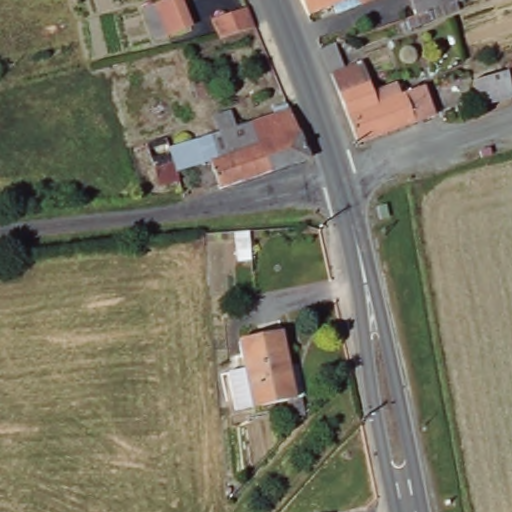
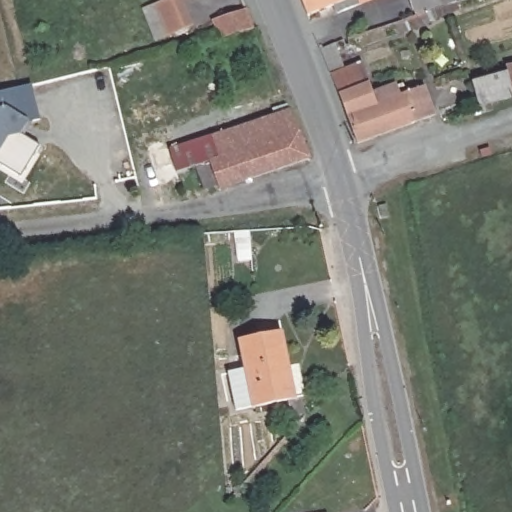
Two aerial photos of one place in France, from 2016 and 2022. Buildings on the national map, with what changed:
unchanged [(191,28),(154,41),(142,10),(170,0),(179,0),(179,1),(191,28)]
unchanged [(179,0),(181,0),(179,1),(179,0)]
unchanged [(329,6),(303,16),(296,0),(366,0),(332,14),(329,6)]
unchanged [(411,15),(421,11),(417,0),(464,0),(466,6),(444,15),(439,5),(432,8),(436,20),(416,28),(411,15)]
unchanged [(213,19),(248,8),(255,28),(219,39),(213,19)]
unchanged [(321,49),(336,44),(344,69),(360,64),(372,91),(394,83),(399,96),(424,87),(436,115),(359,144),(321,49)]
unchanged [(480,102),(473,78),(507,68),(505,62),(512,60),(512,94),(493,99),(480,102)]
unchanged [(213,73),(217,88),(195,94),(190,79),(213,73)]
new [(40,120),(29,122),(22,135),(40,146),(21,176),(0,163),(0,93),(33,85),(40,120)]
unchanged [(176,174),(178,180),(158,187),(147,154),(133,158),(130,148),(165,139),(169,148),(218,131),(213,116),(230,110),(235,125),(274,115),(273,109),(288,105),(308,153),(310,159),(219,189),(202,190),(194,168),(176,174)]
unchanged [(295,398),(302,398),(305,414),(293,417),(289,401),(253,408),(236,411),(228,373),(245,370),(239,342),(282,333),(295,398)]

